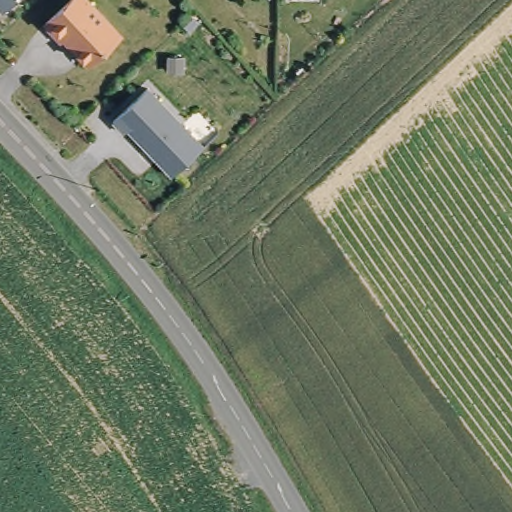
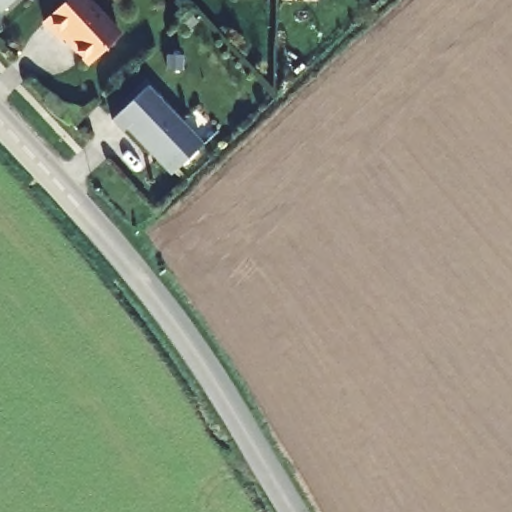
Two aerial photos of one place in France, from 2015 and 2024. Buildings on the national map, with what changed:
unchanged [(9,0),(0,8),(0,0),(9,0)]
unchanged [(85,0),(115,33),(83,62),(58,36),(55,39),(40,21),(63,0),(85,0)]
unchanged [(198,147),(167,176),(123,128),(120,131),(108,119),(143,87),(198,147)]

